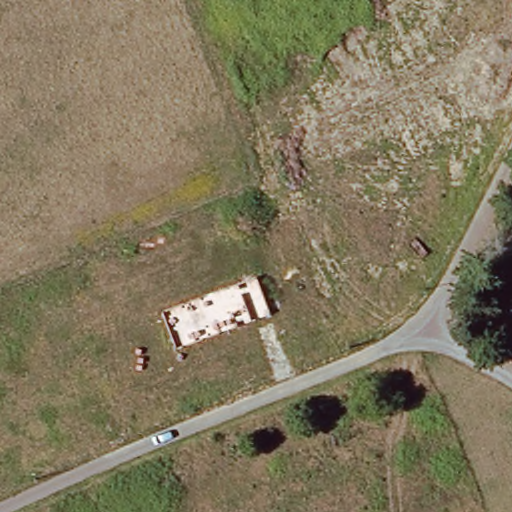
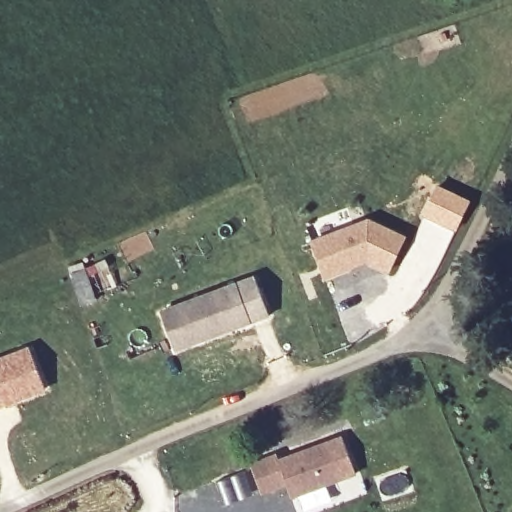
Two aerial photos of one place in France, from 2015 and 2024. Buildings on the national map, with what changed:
new [(470,200),(455,231),(422,215),(437,184),(470,200)]
new [(324,276),(312,242),(369,221),(404,238),(387,271),(365,261),(350,267),(324,276)]
new [(271,317),(175,353),(160,311),(255,276),(271,317)]
new [(45,388),(0,405),(0,360),(30,348),(45,388)]
new [(276,453),(278,458),(341,436),(355,472),(290,495),(285,481),(260,491),(250,463),(276,453)]

